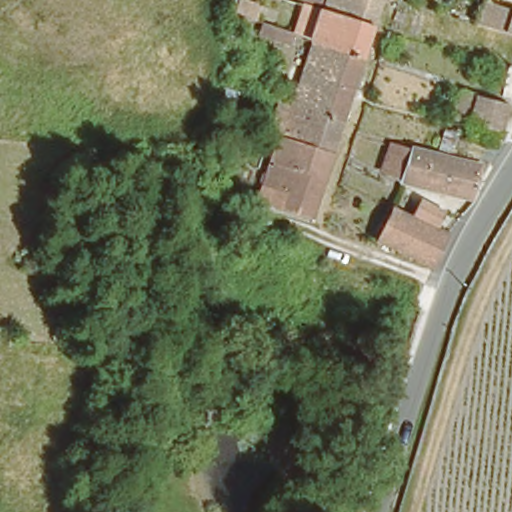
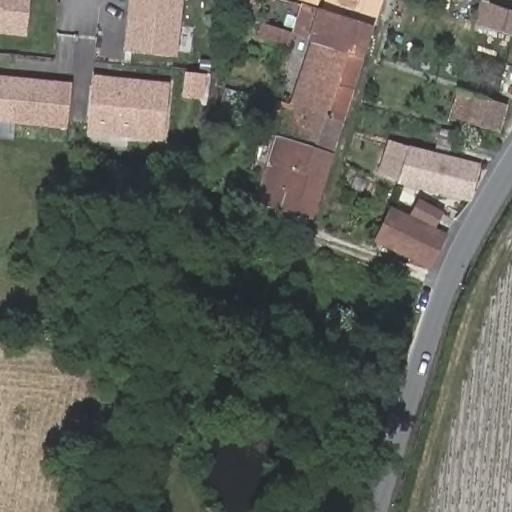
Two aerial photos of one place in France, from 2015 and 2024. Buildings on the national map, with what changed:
new [(0,30),(0,0),(30,0),(27,33),(0,30)]
new [(133,0),(184,0),(178,56),(128,51),(131,21),(132,9),(133,0)]
unchanged [(297,26),(305,0),(324,0),(373,16),(363,49),(362,48),(360,48),(343,41),(342,41),(337,40),(336,39),(335,39),(327,36),(325,36),(321,34),(320,34),(313,31),(298,26),(297,26)]
unchanged [(324,0),(378,0),(373,16),(324,0)]
unchanged [(508,36),(473,26),(480,2),(512,13),(512,38),(508,36)]
unchanged [(288,59),(286,59),(292,42),(307,46),(313,31),(320,34),(321,34),(325,36),(327,36),(335,39),(336,39),(337,40),(342,41),(343,41),(360,48),(362,48),(363,49),(354,81),(352,80),(350,79),(331,73),(326,71),(309,66),(301,64),(288,59)]
unchanged [(301,64),(309,66),(326,71),(331,73),(350,79),(352,80),(354,81),(344,111),(291,95),(301,64)]
new [(67,129),(0,123),(0,72),(71,86),(67,129)]
new [(94,85),(95,76),(137,81),(172,84),(166,139),(131,136),(90,131),(91,121),(94,85)]
unchanged [(498,128),(452,114),(458,86),(506,101),(498,128)]
unchanged [(286,130),(278,127),(283,112),(272,108),(276,90),(291,95),(344,111),(333,146),(286,130)]
unchanged [(278,127),(286,130),(333,146),(326,169),(322,168),(304,161),(293,158),(279,154),(272,151),(271,151),(278,127)]
unchanged [(396,178),(396,174),(380,169),(386,144),(473,168),(468,190),(465,196),(464,196),(396,178)]
unchanged [(258,189),(262,176),(266,166),(268,159),(270,155),(271,151),(272,151),(279,154),(293,158),(304,161),(322,168),(326,169),(313,210),(305,208),(284,201),(281,199),(258,192),(258,189)]
unchanged [(380,207),(434,233),(426,247),(420,263),(367,236),(373,222),(380,207)]
unchanged [(422,214),(433,219),(429,228),(421,224),(418,222),(422,214)]

